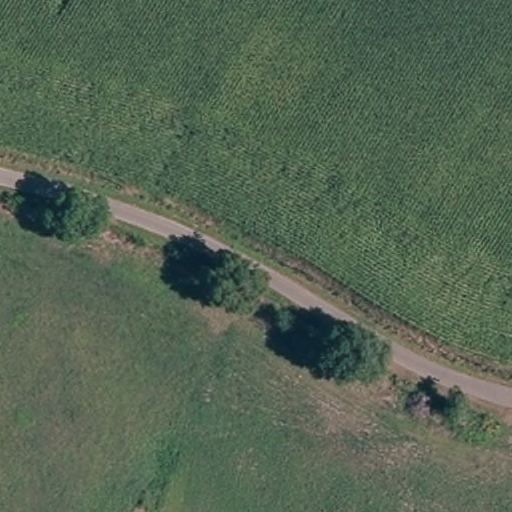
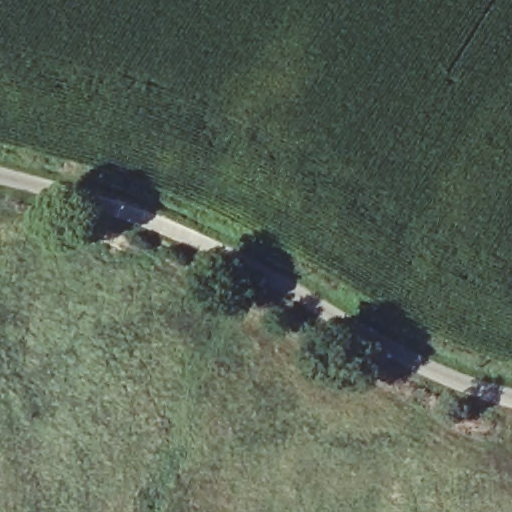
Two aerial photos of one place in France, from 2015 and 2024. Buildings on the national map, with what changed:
[]

